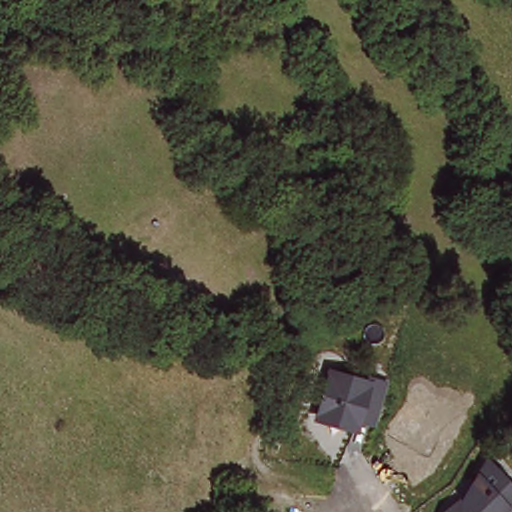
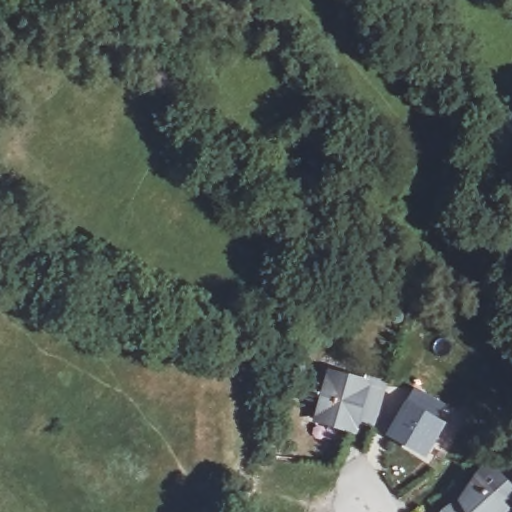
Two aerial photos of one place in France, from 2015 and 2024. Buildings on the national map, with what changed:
unchanged [(374,431),(358,426),(356,437),(311,422),(326,371),(364,381),(366,376),(388,384),(374,431)]
new [(417,386),(456,409),(449,425),(429,459),(387,435),(408,402),(417,386)]
unchanged [(458,501),(485,458),(512,487),(512,512),(443,512),(458,501)]

